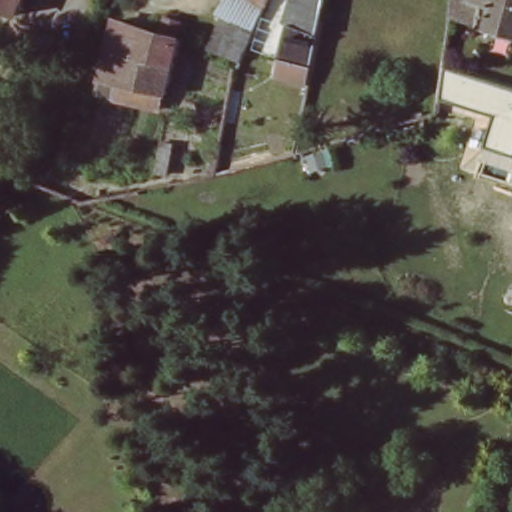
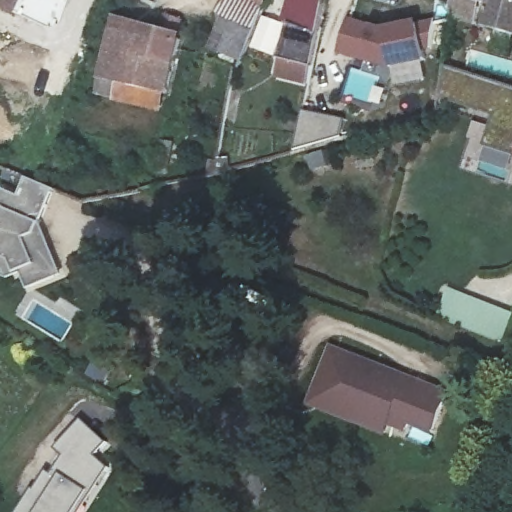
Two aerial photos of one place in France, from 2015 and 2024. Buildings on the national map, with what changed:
unchanged [(0,0),(27,0),(19,19),(0,10),(0,0)]
unchanged [(191,1),(163,114),(99,98),(119,11),(146,17),(151,1),(147,0),(188,0),(191,1)]
unchanged [(221,0),(261,0),(267,3),(235,61),(219,50),(234,24),(215,12),(221,0)]
unchanged [(267,3),(261,0),(268,0),(267,3)]
unchanged [(282,64),(290,27),(286,27),(291,0),(322,0),(316,32),(308,69),(282,64)]
unchanged [(486,31),(492,9),(484,7),(477,27),(455,22),(460,0),(512,0),(512,38),(486,31)]
new [(390,25),(437,21),(440,59),(385,62),(341,50),(351,14),(390,25)]
new [(439,99),(450,66),(512,86),(512,173),(481,162),(496,117),(439,99)]
demolished [(439,112),(445,72),(466,76),(459,116),(447,112),(439,112)]
new [(345,118),(345,142),(301,153),(307,110),(345,118)]
demolished [(445,139),(447,120),(465,122),(464,141),(445,139)]
new [(22,195),(29,181),(56,192),(45,220),(69,236),(67,271),(34,286),(21,272),(15,279),(0,273),(0,202),(7,189),(22,195)]
new [(437,317),(450,287),(512,312),(512,321),(504,343),(437,317)]
new [(460,391),(445,431),(414,421),(411,429),(395,422),(392,435),(314,405),(335,342),(460,391)]
new [(107,442),(96,455),(109,468),(82,512),(17,512),(31,490),(33,491),(46,472),(51,475),(64,455),(55,447),(84,420),(107,442)]

